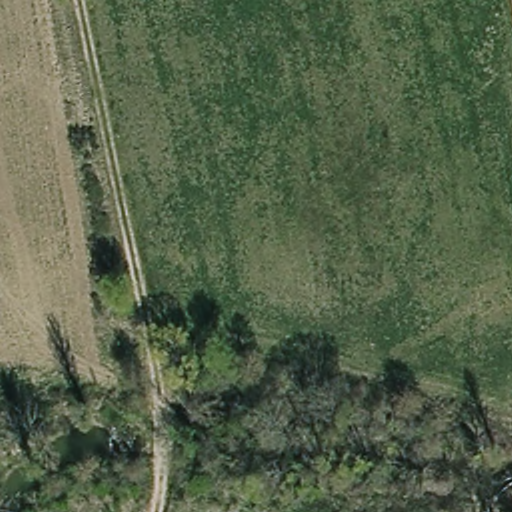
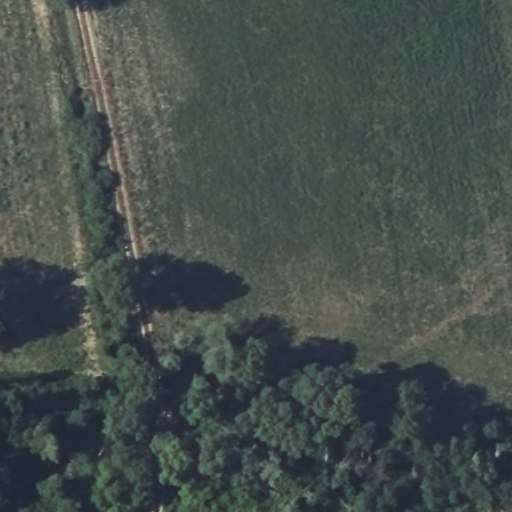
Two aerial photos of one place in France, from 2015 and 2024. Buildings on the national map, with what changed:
[]

